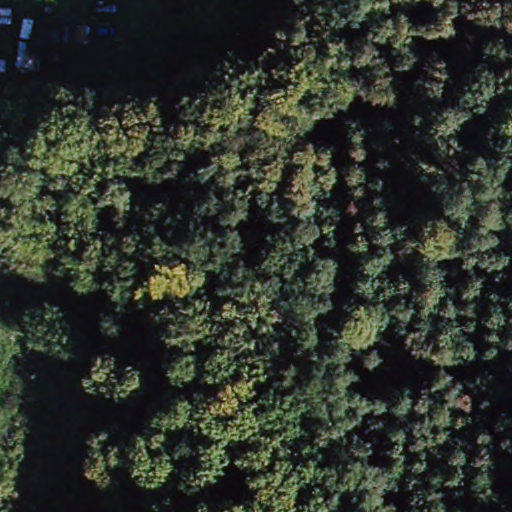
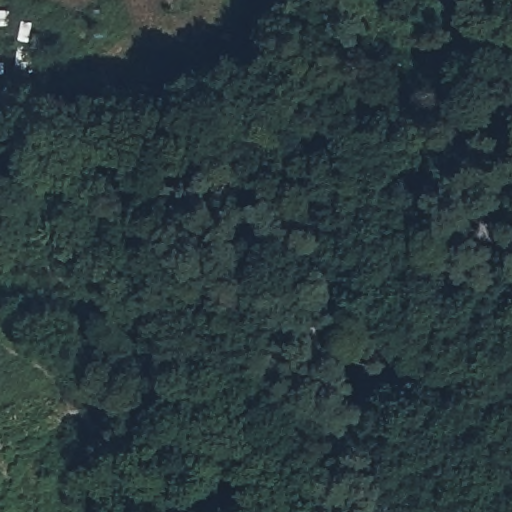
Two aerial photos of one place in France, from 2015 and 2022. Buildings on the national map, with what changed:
[]

